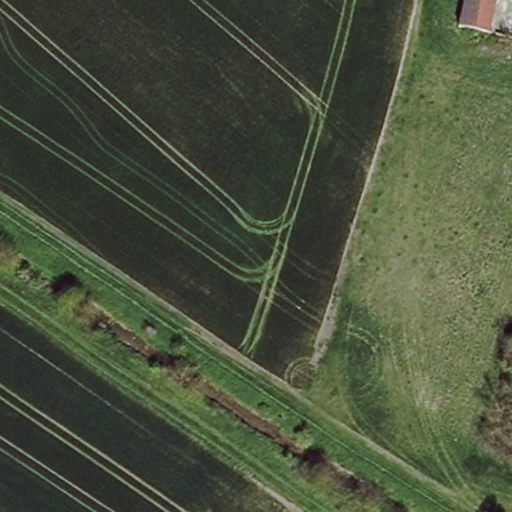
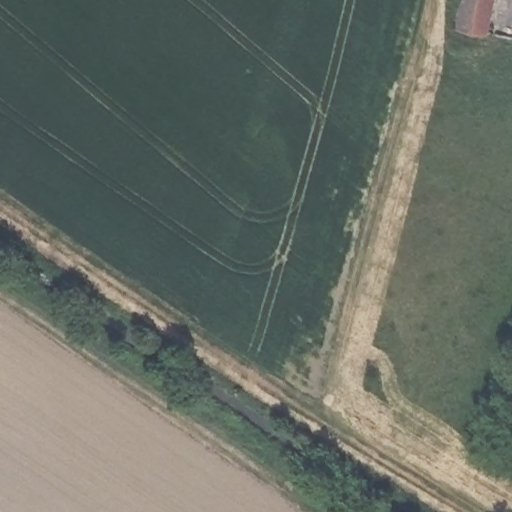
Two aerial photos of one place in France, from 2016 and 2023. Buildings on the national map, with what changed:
unchanged [(452,44),(460,0),(490,0),(490,1),(484,31),(479,50),(452,44)]

